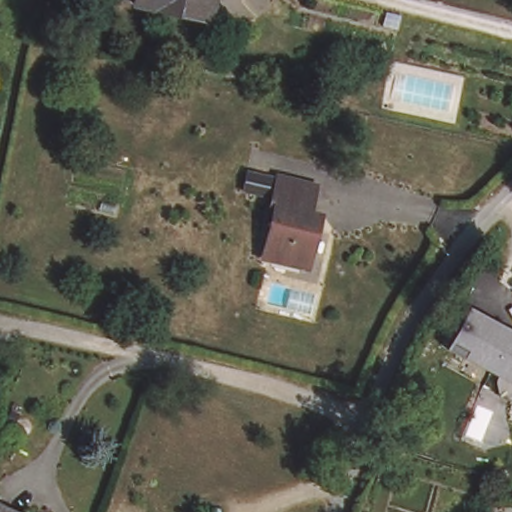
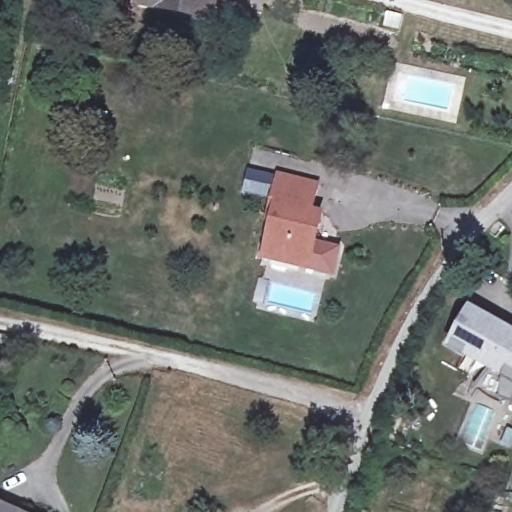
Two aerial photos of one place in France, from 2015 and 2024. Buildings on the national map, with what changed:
unchanged [(215,26),(207,25),(161,15),(160,21),(135,16),(139,0),(220,0),(215,26)]
unchanged [(306,214),(316,217),(305,268),(260,257),(268,223),(265,222),(275,178),(314,186),(306,214)]
unchanged [(512,379),(450,346),(472,307),(512,329),(512,379)]
unchanged [(0,512),(0,506),(13,512),(0,512)]

